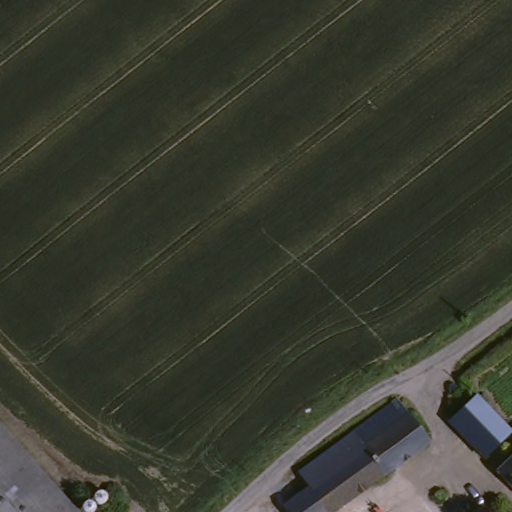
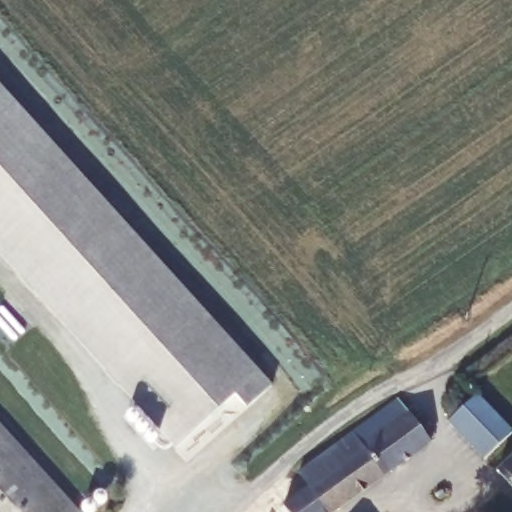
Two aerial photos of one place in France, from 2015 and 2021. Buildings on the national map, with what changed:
new [(0,254),(0,83),(272,384),(246,407),(236,394),(175,449),(0,254)]
unchanged [(512,425),(512,435),(491,455),(451,415),(477,393),(512,425)]
unchanged [(360,497),(342,512),(298,512),(288,499),(306,486),(298,472),(404,399),(435,443),(360,497)]
unchanged [(11,430),(86,512),(0,512),(0,418),(11,430)]
unchanged [(512,472),(505,463),(512,457),(512,472)]

